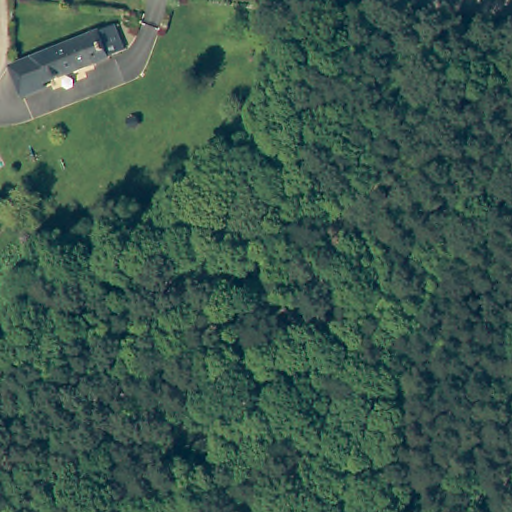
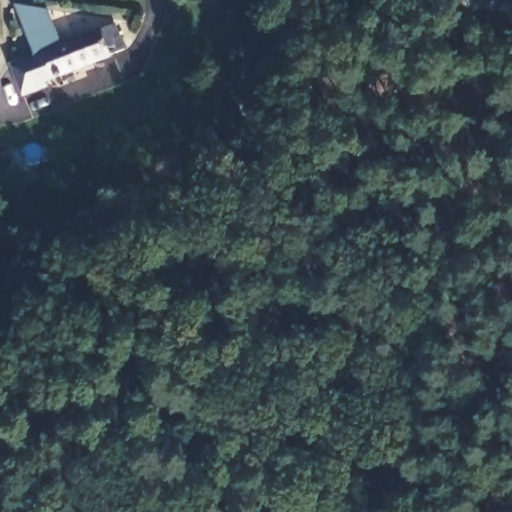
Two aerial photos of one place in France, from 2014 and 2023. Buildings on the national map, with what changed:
new [(34,56),(13,4),(47,9),(60,46),(34,56)]
unchanged [(122,51),(107,57),(107,58),(42,83),(45,88),(19,97),(7,66),(112,26),(122,51)]

